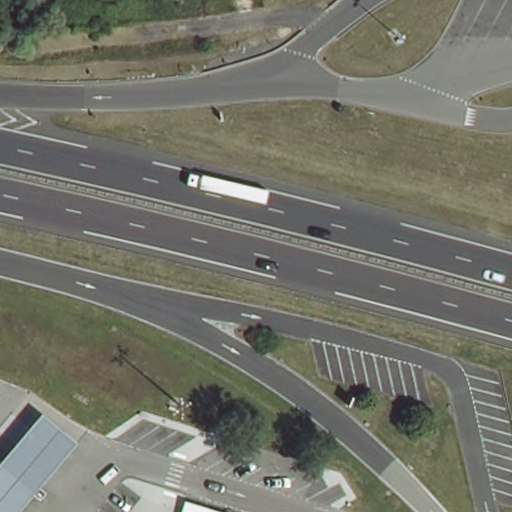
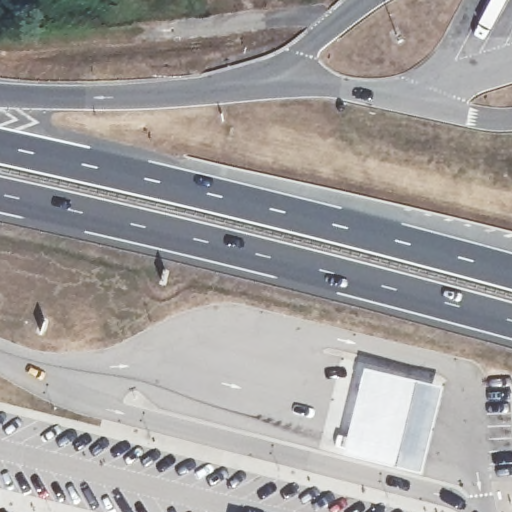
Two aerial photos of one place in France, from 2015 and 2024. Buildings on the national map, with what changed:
demolished [(185,6),(184,0),(210,0),(210,1),(185,6)]
new [(341,451),(363,367),(440,386),(418,470),(341,451)]
demolished [(43,408),(78,439),(21,512),(0,512),(0,460),(43,408)]

